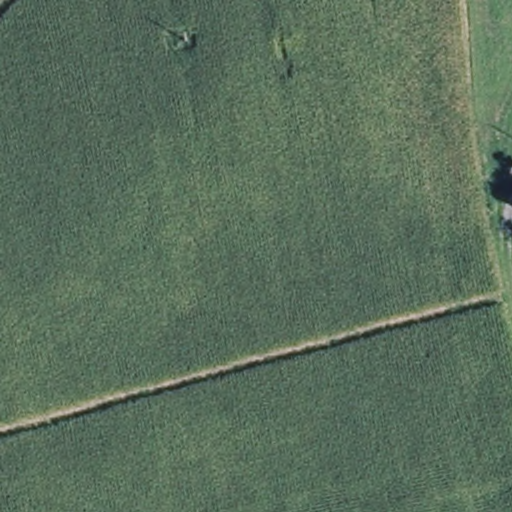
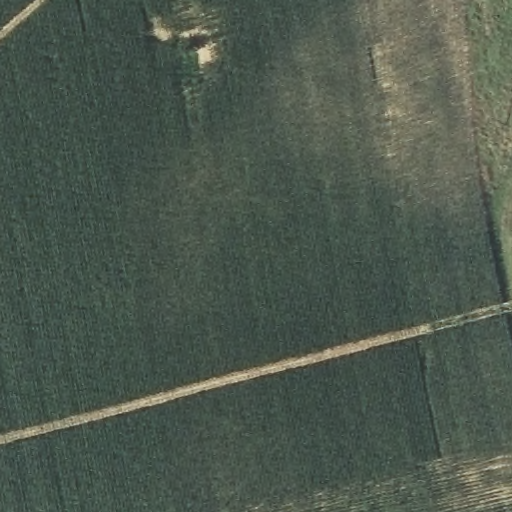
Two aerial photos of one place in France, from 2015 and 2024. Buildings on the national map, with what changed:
[]

